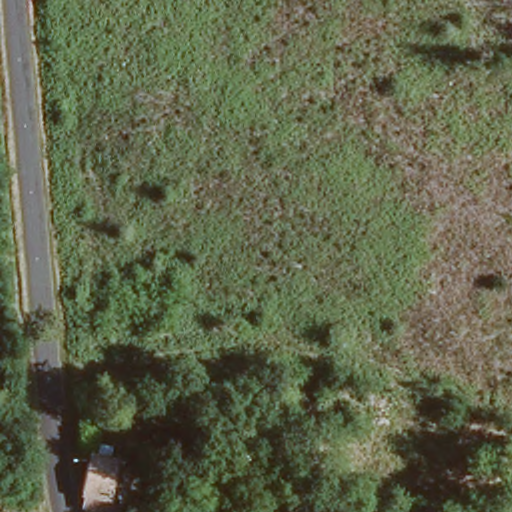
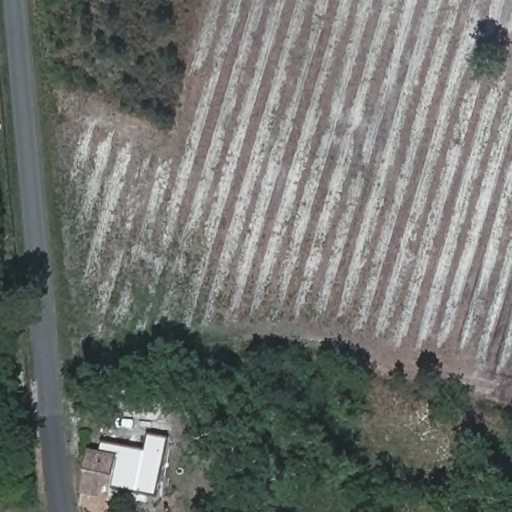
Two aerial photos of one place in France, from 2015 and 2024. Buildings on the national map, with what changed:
new [(108,487),(117,456),(101,451),(102,445),(146,452),(149,436),(169,439),(156,497),(108,487)]
unchanged [(79,493),(80,482),(91,448),(117,456),(107,490),(104,501),(79,493)]

